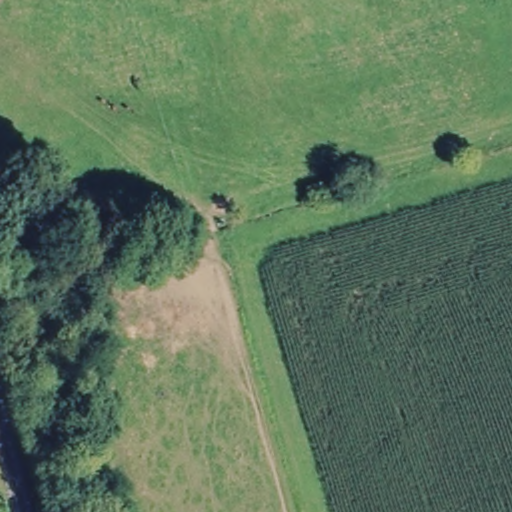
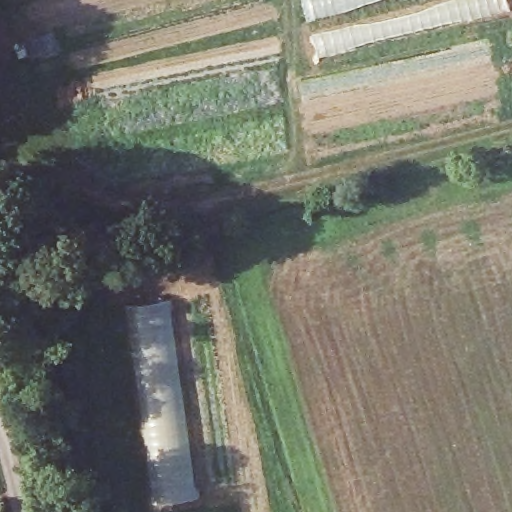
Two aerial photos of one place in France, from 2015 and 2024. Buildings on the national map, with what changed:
new [(307,22),(301,0),(378,0),(338,14),(307,22)]
new [(448,22),(378,39),(354,47),(319,57),(314,34),(357,24),(383,21),(414,13),(444,2),(450,0),(509,0),(511,9),(448,22)]
new [(171,299),(181,378),(200,500),(150,509),(139,427),(130,339),(126,306),(171,299)]

